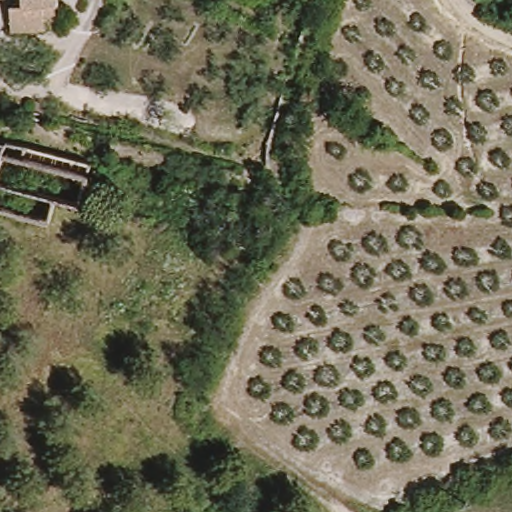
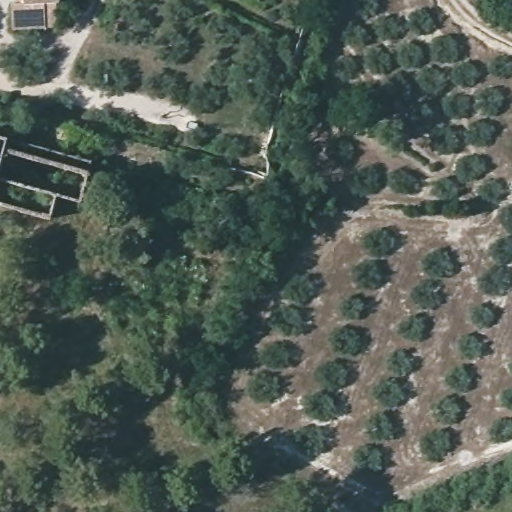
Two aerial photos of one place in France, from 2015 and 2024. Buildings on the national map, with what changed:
unchanged [(9,0),(53,0),(54,23),(43,23),(10,24),(9,0)]

